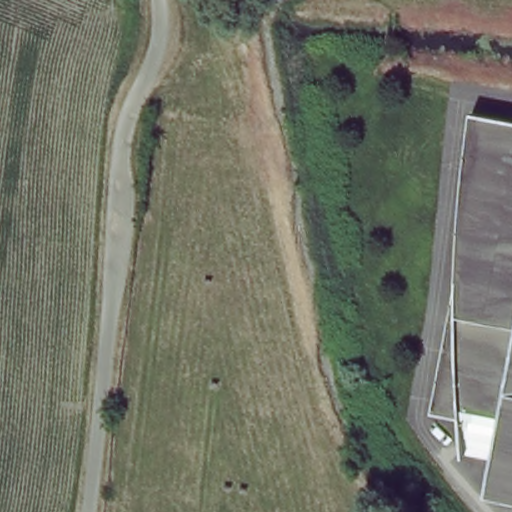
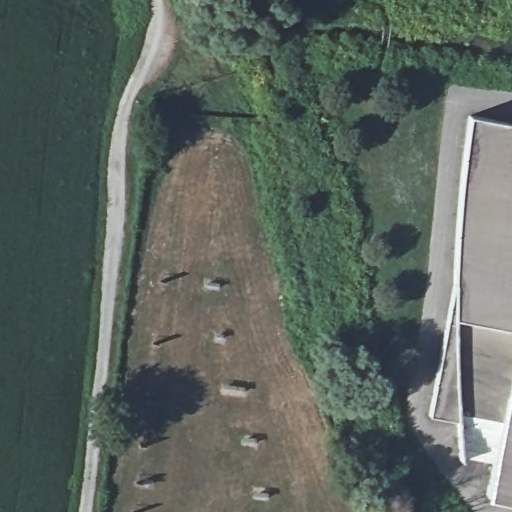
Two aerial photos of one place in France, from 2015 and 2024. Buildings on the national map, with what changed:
unchanged [(485,494),(490,462),(459,454),(452,422),(432,415),(457,273),(460,176),(461,154),(472,114),(512,122),(512,499),(485,494)]

